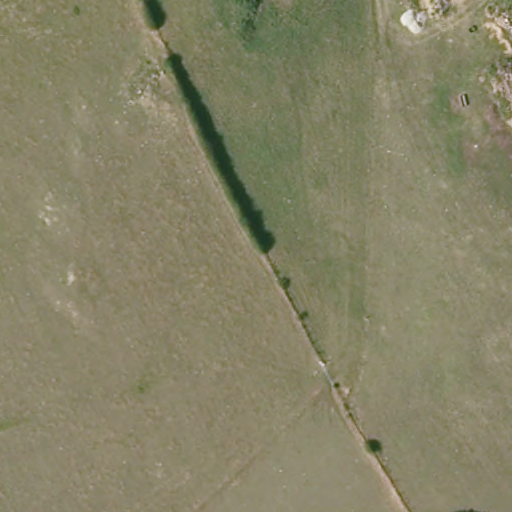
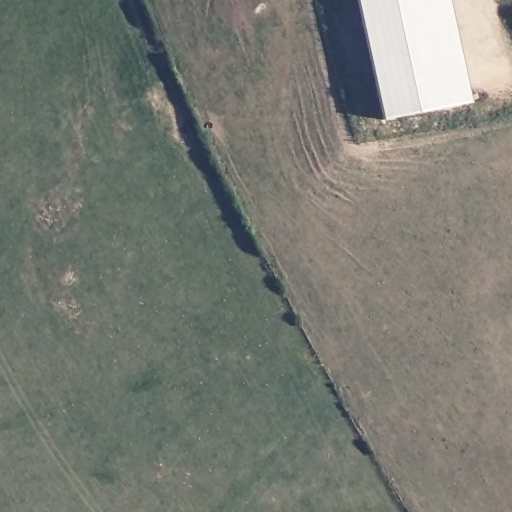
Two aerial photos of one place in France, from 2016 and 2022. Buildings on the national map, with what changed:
new [(355,0),(448,0),(470,103),(381,120),(355,0)]

